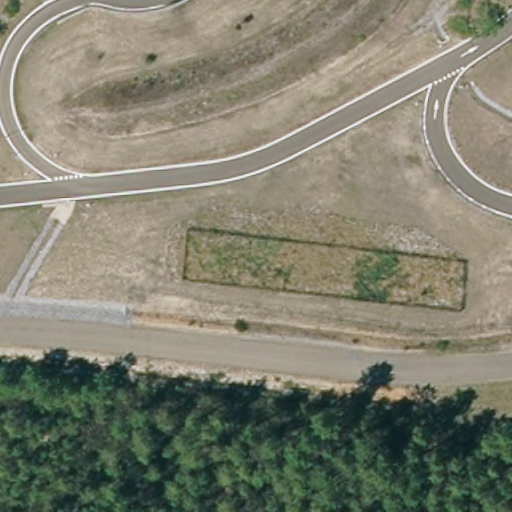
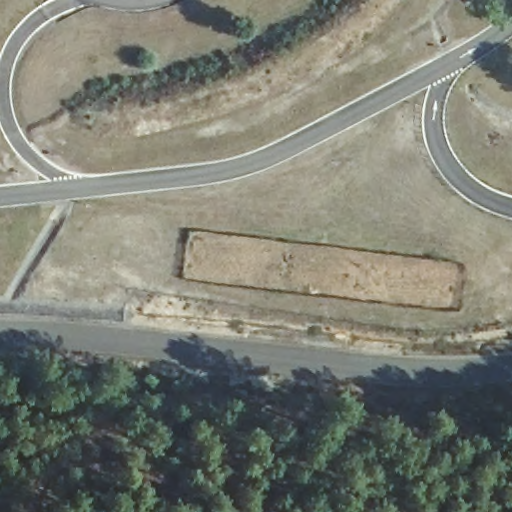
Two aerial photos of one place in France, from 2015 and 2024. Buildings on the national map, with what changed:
[]

